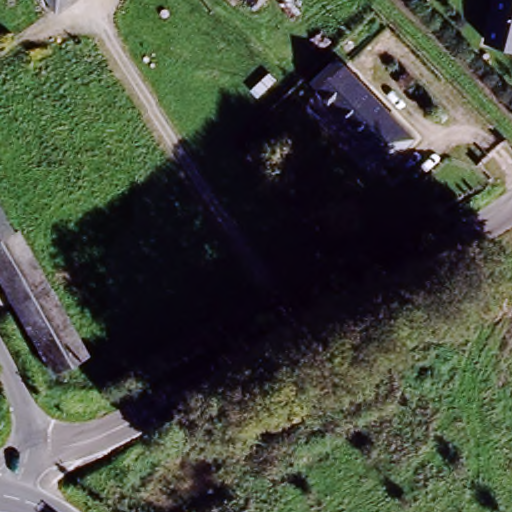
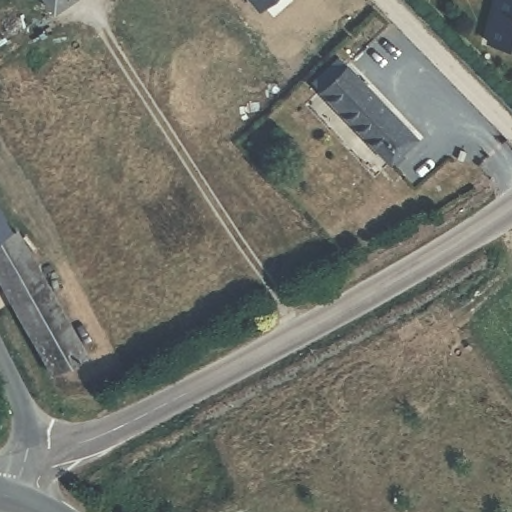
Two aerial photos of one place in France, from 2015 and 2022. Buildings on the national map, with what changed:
unchanged [(39,0),(62,0),(47,11),(39,0)]
unchanged [(251,0),(262,0),(256,6),(251,0)]
unchanged [(492,50),(501,0),(512,0),(512,52),(492,50)]
unchanged [(379,153),(337,108),(321,90),(348,65),(363,83),(406,127),(379,153)]
unchanged [(0,281),(0,211),(12,233),(16,231),(87,356),(52,375),(0,281)]

